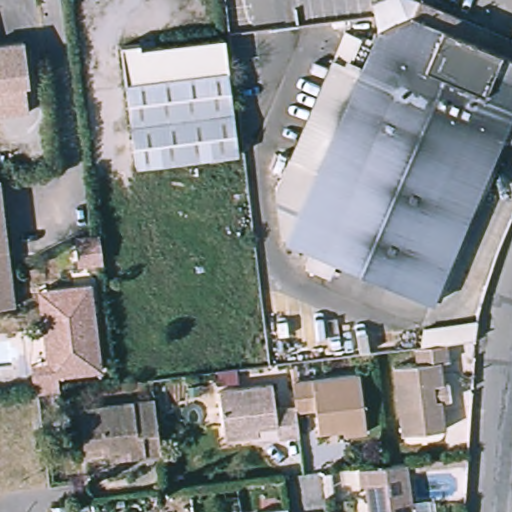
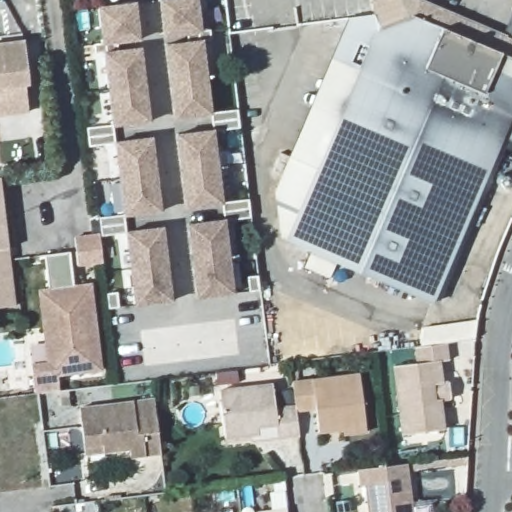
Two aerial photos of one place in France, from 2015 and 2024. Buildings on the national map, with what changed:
new [(201,35),(163,39),(160,0),(193,0),(201,35)]
unchanged [(312,245),(289,235),(290,234),(282,230),(276,188),(291,154),(319,166),(361,67),(371,44),(370,44),(377,26),(375,0),(433,0),(512,34),(512,107),(431,296),(337,255),(330,271),(306,260),(312,245)]
new [(140,42),(101,46),(96,6),(135,3),(140,42)]
unchanged [(361,30),(371,35),(360,62),(349,58),(361,30)]
demolished [(239,154),(137,167),(122,46),(140,44),(141,49),(225,39),(239,154)]
unchanged [(24,41),(29,84),(25,85),(29,112),(0,116),(0,45),(24,41)]
new [(211,114),(173,119),(164,46),(199,43),(211,114)]
new [(150,123),(111,128),(102,53),(141,50),(150,123)]
unchanged [(333,55),(361,67),(319,166),(291,154),(333,55)]
new [(512,107),(512,142),(499,137),(512,107)]
new [(222,208),(184,213),(176,134),(211,131),(222,208)]
new [(159,213),(121,217),(114,142),(152,138),(159,213)]
unchanged [(508,184),(507,186),(504,187),(500,187),(498,185),(497,182),(497,179),(498,177),(500,175),(503,175),(506,176),(508,178),(509,181),(508,184)]
unchanged [(15,307),(0,309),(0,186),(15,307)]
new [(234,293),(196,296),(188,226),(220,222),(234,293)]
new [(172,301),(134,305),(124,231),(162,227),(172,301)]
unchanged [(103,262),(78,265),(75,238),(100,235),(103,262)]
unchanged [(106,371),(63,376),(65,391),(40,394),(38,377),(36,365),(54,363),(45,291),(52,290),(96,284),(106,371)]
unchanged [(435,410),(441,409),(445,439),(402,444),(394,376),(417,374),(415,358),(415,357),(422,357),(425,338),(477,332),(476,350),(446,354),(448,371),(440,372),(443,392),(434,395),(435,410)]
unchanged [(371,432),(349,435),(348,430),(324,433),(321,411),(301,414),(300,406),(298,382),(364,374),(371,432)]
unchanged [(301,414),(302,422),(304,435),(258,441),(257,435),(230,438),(224,391),(277,385),(278,385),(281,409),(300,406),(301,414)]
unchanged [(450,409),(441,410),(441,409),(435,410),(434,395),(443,393),(443,392),(448,392),(450,409)]
unchanged [(89,451),(85,414),(159,405),(166,459),(135,463),(134,454),(109,457),(90,460),(89,451)]
unchanged [(365,491),(364,475),(412,470),(417,512),(373,512),(371,490),(365,491)]

